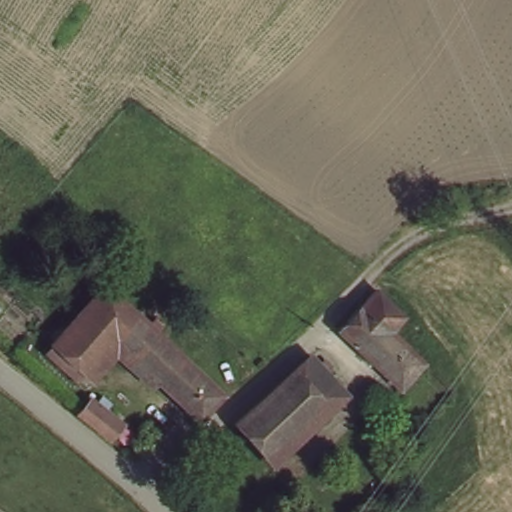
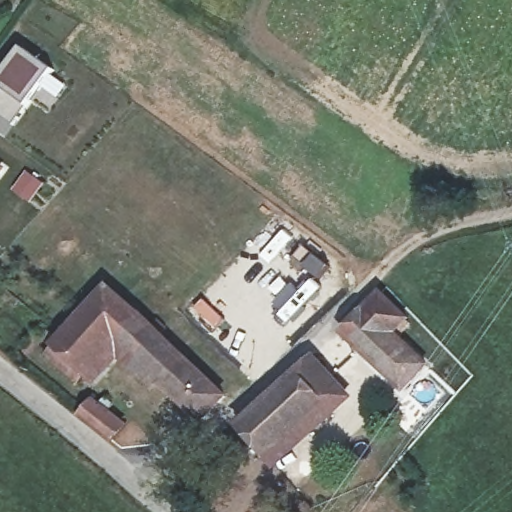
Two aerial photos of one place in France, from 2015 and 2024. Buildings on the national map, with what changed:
new [(25,106),(11,123),(0,114),(0,94),(4,90),(0,87),(0,75),(19,47),(51,71),(25,106)]
new [(0,174),(0,164),(5,167),(0,174)]
unchanged [(55,344),(62,336),(68,329),(95,300),(88,292),(97,281),(106,288),(113,280),(229,391),(209,412),(126,336),(94,367),(86,375),(55,344)]
unchanged [(396,381),(383,367),(339,325),(346,317),(379,287),(409,317),(394,331),(408,343),(422,357),(396,381)]
unchanged [(273,462),(267,455),(237,423),(283,382),(310,357),(319,365),(326,359),(333,366),(326,372),(339,387),(346,396),(273,462)]
unchanged [(86,410),(82,404),(90,397),(97,402),(105,395),(113,401),(106,408),(124,426),(110,440),(81,415),(86,410)]
unchanged [(323,503),(313,512),(309,512),(305,508),(316,497),(323,503)]

